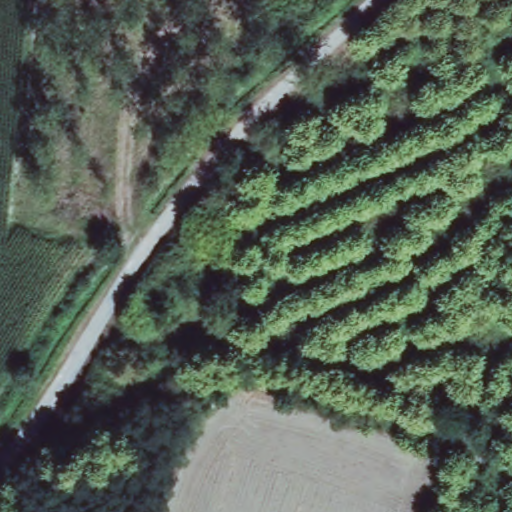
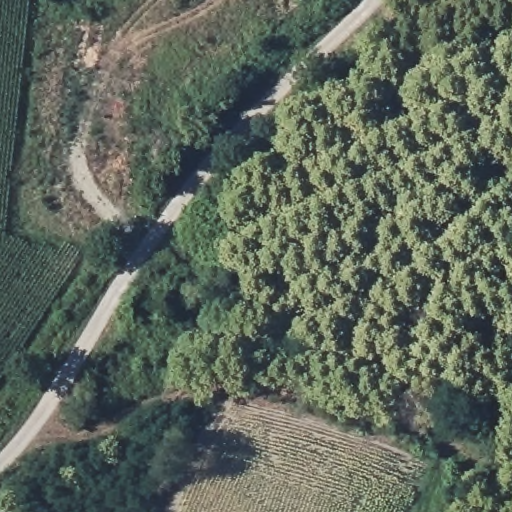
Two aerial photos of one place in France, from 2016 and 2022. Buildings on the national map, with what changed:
unchanged [(197,229),(215,244),(181,293),(160,275),(197,229)]

